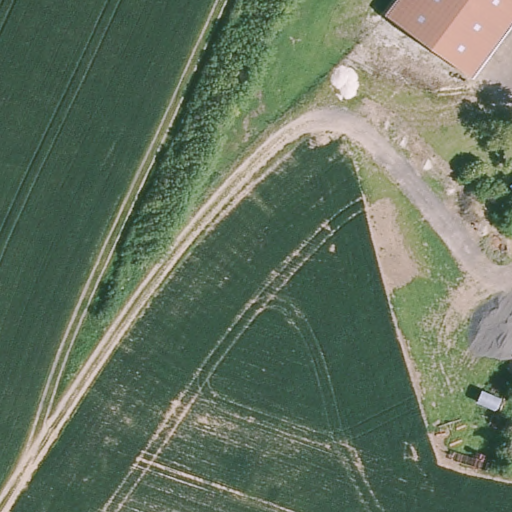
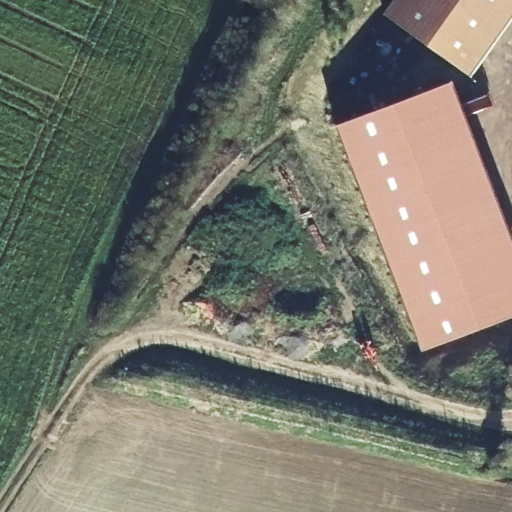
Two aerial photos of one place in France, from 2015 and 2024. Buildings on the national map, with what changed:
unchanged [(385,7),(391,0),(512,0),(512,14),(468,71),(385,7)]
new [(512,246),(512,324),(425,355),(347,127),(455,93),(512,246)]

